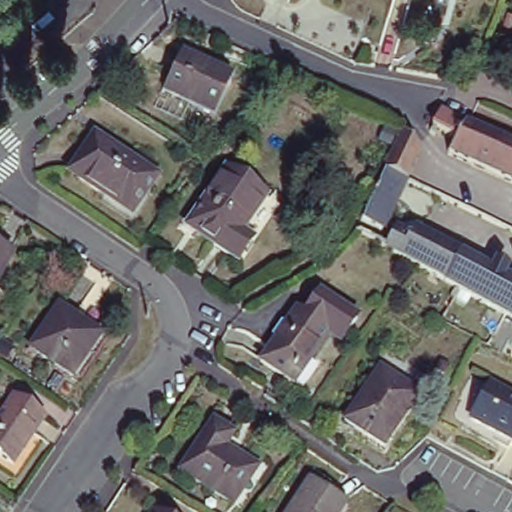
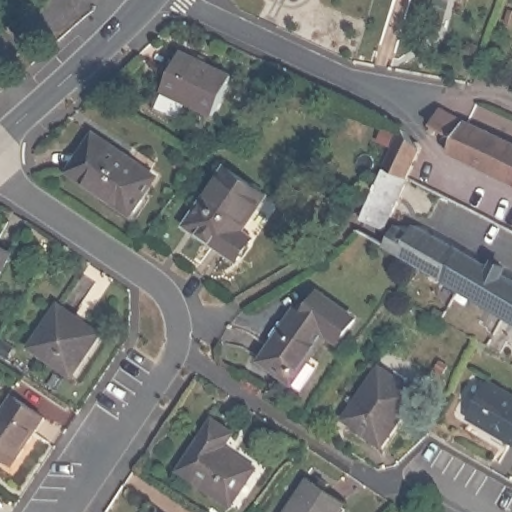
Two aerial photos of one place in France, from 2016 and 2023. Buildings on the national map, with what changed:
unchanged [(232,77),(214,116),(162,92),(181,54),(232,77)]
unchanged [(512,180),(447,149),(447,148),(455,135),(431,122),(440,105),(463,117),(467,120),(477,124),(512,140),(512,180)]
unchanged [(386,216),(382,225),(361,216),(366,203),(383,165),(402,125),(420,145),(406,175),(406,176),(387,217),(386,216)]
unchanged [(160,173),(147,191),(136,209),(130,205),(75,167),(99,132),(160,173)]
unchanged [(190,232),(181,226),(185,220),(221,169),(261,196),(237,232),(247,240),(232,262),(190,232)]
unchanged [(410,235),(414,227),(491,270),(497,266),(503,270),(503,277),(512,282),(512,321),(418,268),(383,248),(385,247),(395,227),(410,235)]
unchanged [(12,254),(0,276),(0,248),(12,254)]
unchanged [(293,377),(265,357),(278,337),(276,331),(285,317),(292,318),(300,306),(307,311),(322,290),(361,315),(346,336),(333,328),(313,358),(298,380),(293,377)]
unchanged [(105,335),(77,376),(35,348),(64,306),(105,335)]
unchanged [(418,395),(383,447),(344,420),(379,368),(418,395)]
unchanged [(512,443),(469,420),(489,385),(512,397),(512,443)]
unchanged [(0,457),(0,417),(13,398),(44,418),(12,465),(0,457)]
unchanged [(170,472),(202,421),(222,435),(213,447),(246,469),(222,505),(170,472)]
unchanged [(345,503),(339,512),(288,512),(309,480),(345,503)]

